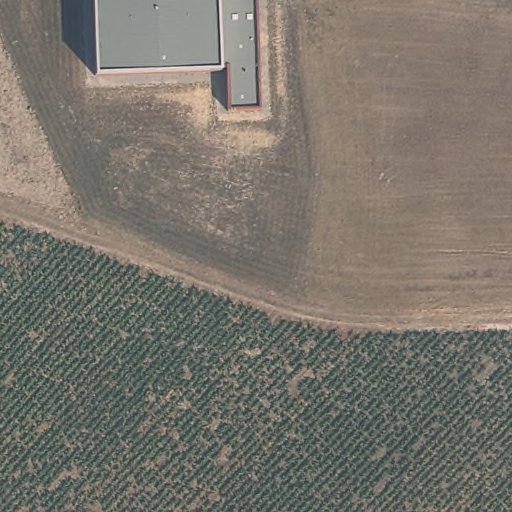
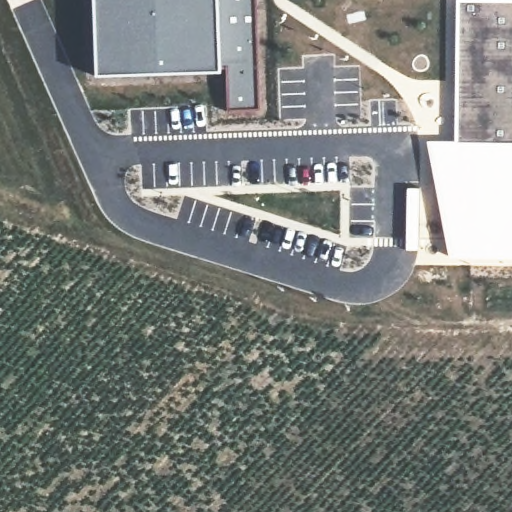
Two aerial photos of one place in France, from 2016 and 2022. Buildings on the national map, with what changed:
unchanged [(226,111),(225,69),(220,69),(218,74),(94,76),(92,0),(255,0),(259,109),(226,111)]
new [(512,0),(512,255),(455,255),(459,0),(512,0)]

